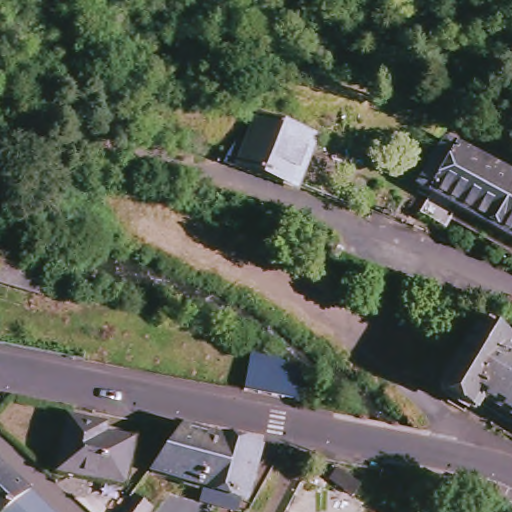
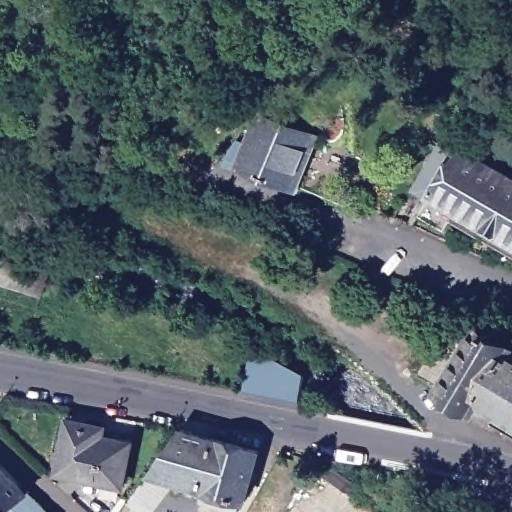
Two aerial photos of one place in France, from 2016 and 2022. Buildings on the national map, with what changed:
unchanged [(242,145),(251,149),(265,119),(326,141),(307,194),(230,165),(242,145)]
unchanged [(451,232),(426,218),(436,197),(424,191),(459,130),(512,161),(512,241),(463,213),(451,232)]
unchanged [(51,275),(45,299),(0,284),(0,260),(51,275)]
unchanged [(498,426),(447,396),(447,394),(425,381),(433,365),(443,348),(452,334),(474,347),(485,331),(512,347),(512,441),(496,431),(498,426)]
unchanged [(315,380),(312,406),(255,395),(260,360),(315,380)]
unchanged [(125,483),(60,469),(70,420),(105,427),(104,435),(133,441),(125,483)]
unchanged [(157,478),(187,434),(221,443),(206,492),(157,478)]
unchanged [(266,456),(250,505),(206,492),(221,443),(266,456)]
unchanged [(35,491),(55,512),(0,512),(0,458),(35,491)]
unchanged [(357,488),(351,498),(340,491),(348,481),(357,488)]
unchanged [(150,509),(148,512),(124,512),(134,498),(150,509)]

